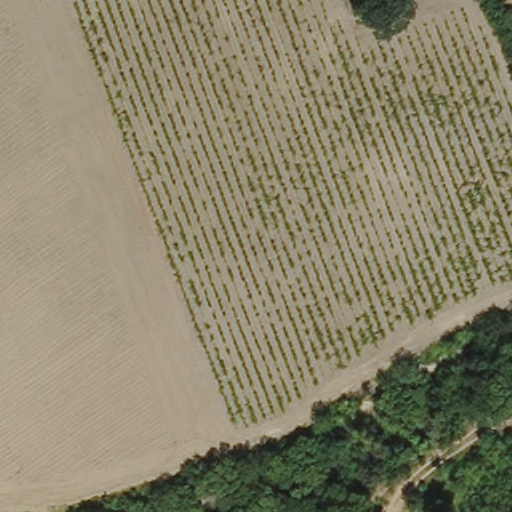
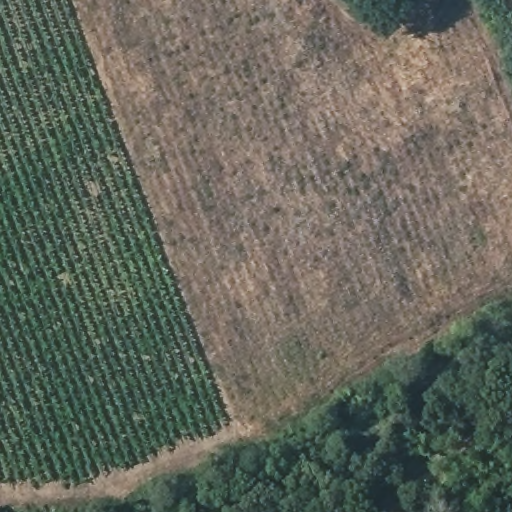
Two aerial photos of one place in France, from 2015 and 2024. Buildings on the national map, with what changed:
unchanged [(355,1),(354,0),(357,0),(355,1)]

